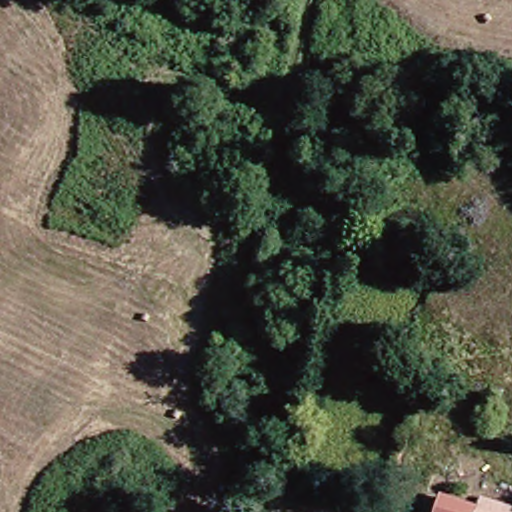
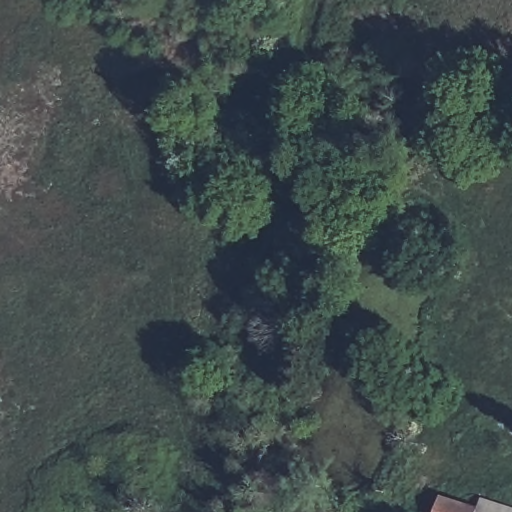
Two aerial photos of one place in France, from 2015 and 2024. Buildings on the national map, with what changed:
unchanged [(512,511),(512,512),(460,512),(463,498),(512,511)]
unchanged [(433,512),(423,512),(424,510),(433,512)]

